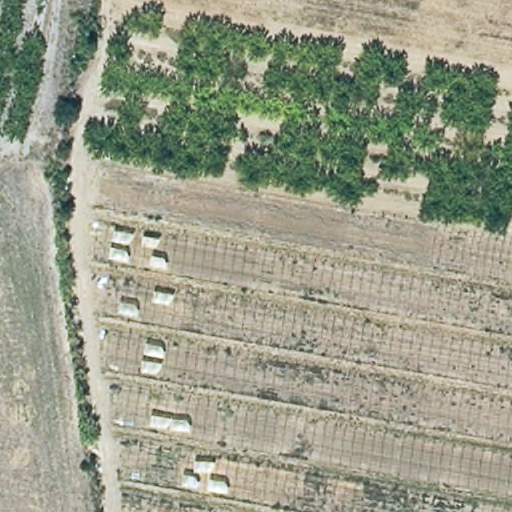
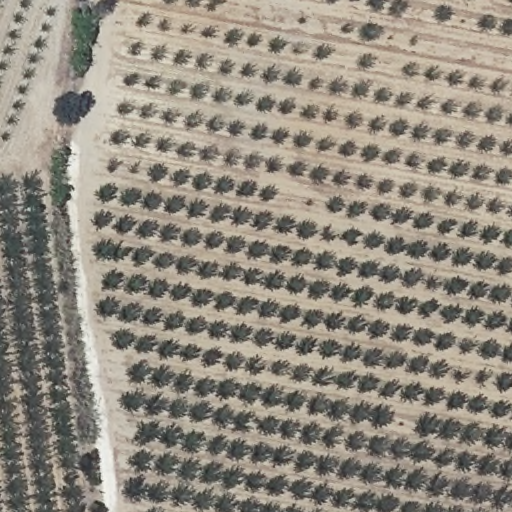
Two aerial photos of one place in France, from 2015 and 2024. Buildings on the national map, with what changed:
demolished [(126,512),(130,485),(120,484),(130,431),(112,427),(118,376),(102,373),(110,322),(100,319),(108,266),(87,262),(99,171),(512,244),(512,512),(126,512)]

